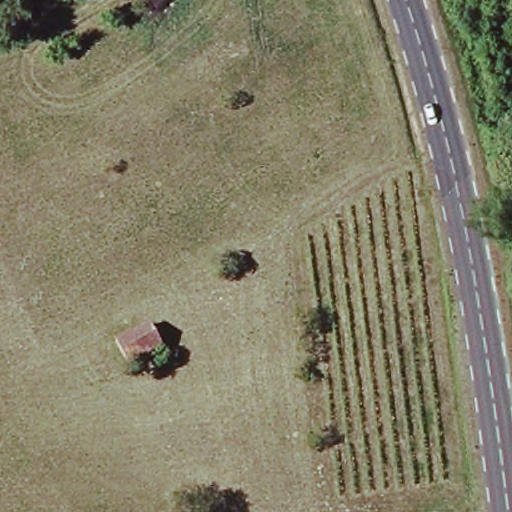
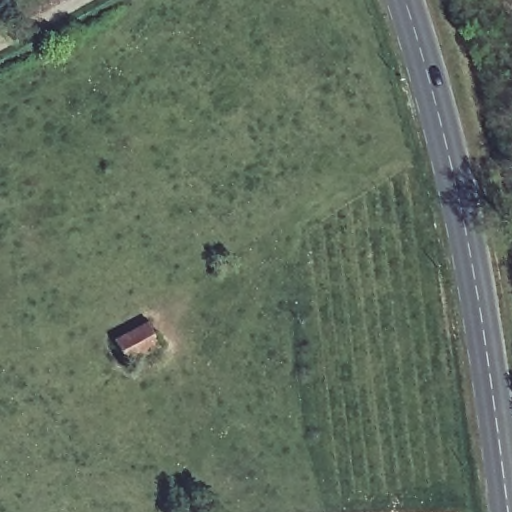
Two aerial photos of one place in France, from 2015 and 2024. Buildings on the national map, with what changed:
unchanged [(149,325),(160,347),(127,363),(116,341),(149,325)]

